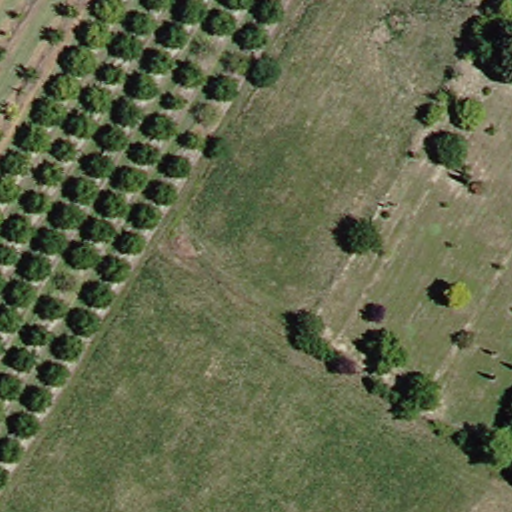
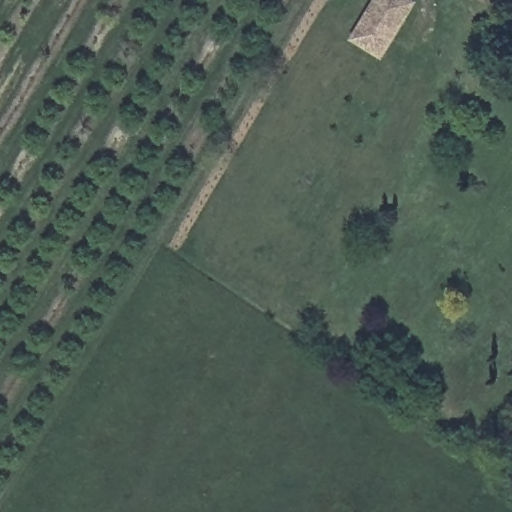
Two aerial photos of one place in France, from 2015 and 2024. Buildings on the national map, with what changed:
new [(384,60),(351,39),(374,0),(418,0),(419,1),(384,60)]
new [(504,16),(494,10),(478,0),(512,0),(512,2),(504,16)]

